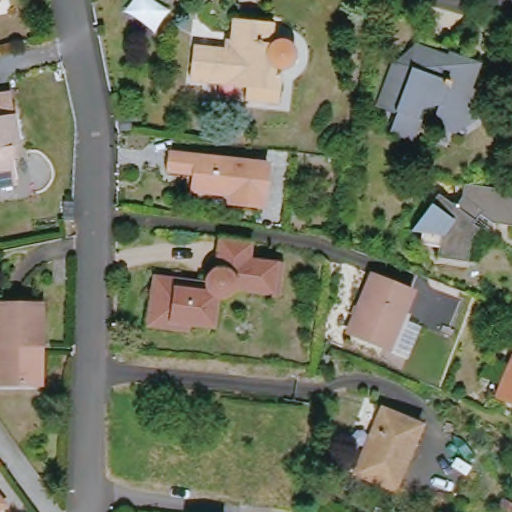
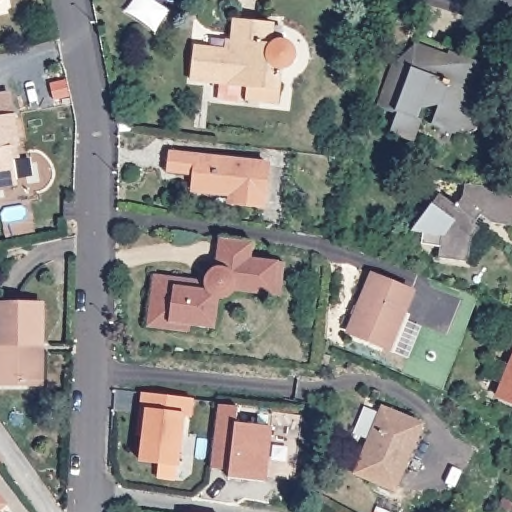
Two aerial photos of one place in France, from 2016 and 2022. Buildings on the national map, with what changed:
unchanged [(0,0),(2,0),(0,3),(0,0)]
unchanged [(200,47),(236,51),(238,20),(277,25),(277,44),(279,41),(280,40),(283,40),(288,40),(296,42),(298,45),(300,47),(302,50),(301,54),(301,59),(299,62),(297,65),(295,67),(292,69),(285,69),(283,89),(267,88),(267,101),(252,100),(253,86),(197,81),(200,47)]
unchanged [(425,42),(478,62),(470,81),(417,62),(425,42)]
unchanged [(470,81),(487,87),(480,110),(472,107),(463,126),(441,117),(449,98),(435,92),(419,134),(402,127),(410,107),(392,101),(407,59),(417,62),(470,81)]
unchanged [(25,197),(0,203),(0,110),(11,107),(16,128),(23,159),(17,161),(25,197)]
unchanged [(269,207),(235,203),(237,195),(198,191),(200,173),(174,171),(176,153),(273,164),(269,207)]
unchanged [(465,260),(465,265),(435,260),(438,236),(409,231),(422,215),(440,192),(455,204),(461,196),(463,183),(512,192),(512,221),(511,227),(490,224),(487,221),(481,262),(465,260)]
unchanged [(75,207),(73,208),(73,220),(65,219),(65,202),(75,202),(75,207)]
unchanged [(157,327),(158,317),(164,275),(205,281),(205,280),(206,277),(207,276),(207,275),(208,273),(209,273),(210,272),(211,271),(213,270),(214,269),(215,268),(219,238),(252,242),(250,258),(278,262),(284,262),(280,297),(273,296),(233,290),(233,291),(232,292),(232,293),(230,293),(229,295),(228,296),(226,297),(225,297),(224,297),(222,297),(220,297),(219,297),(215,327),(199,326),(198,332),(157,327)]
unchanged [(390,351),(348,332),(373,276),(413,292),(390,351)]
unchanged [(47,348),(40,348),(40,388),(2,388),(2,309),(47,310),(47,348)]
unchanged [(497,396),(512,358),(512,403),(497,396)]
new [(191,398),(188,416),(182,415),(175,466),(139,461),(142,436),(137,436),(140,411),(142,392),(191,398)]
new [(218,406),(237,407),(237,423),(274,426),(267,481),(228,478),(230,470),(210,469),(218,406)]
unchanged [(395,490),(355,473),(384,408),(422,425),(395,490)]

